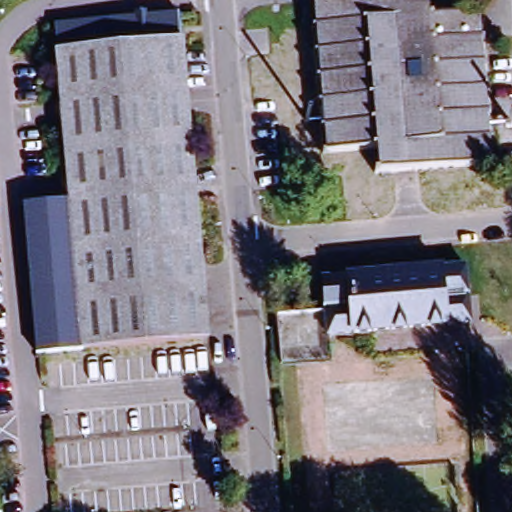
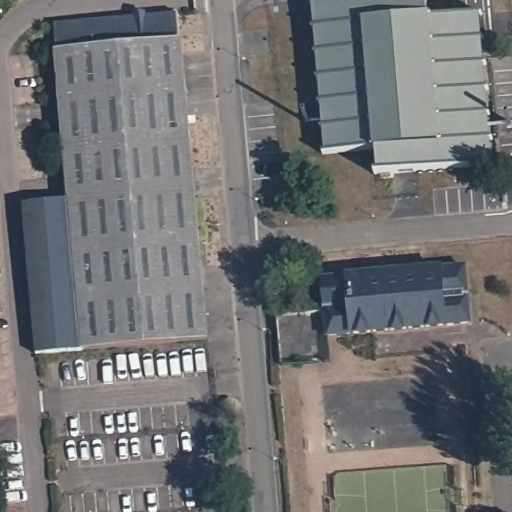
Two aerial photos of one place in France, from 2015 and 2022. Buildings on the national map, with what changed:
unchanged [(373,174),(373,172),(377,172),(375,149),(319,154),(319,152),(323,152),(321,129),(317,129),(317,127),(321,128),(319,104),(315,105),(315,103),(319,102),(317,79),(313,79),(312,77),(316,77),(315,53),(310,54),(310,52),(315,51),(312,29),(308,29),(308,28),(312,27),(310,4),(306,4),(306,2),(335,0),(426,0),(427,17),(481,13),(481,15),(477,15),(479,38),(483,37),(483,39),(479,40),(481,63),(485,63),(485,65),(481,65),(483,88),(487,88),(487,90),(483,90),(485,113),(490,113),(490,115),(485,115),(487,138),(491,137),(491,139),(487,140),(490,163),(493,163),(493,165),(373,174)]
unchanged [(205,340),(80,350),(67,199),(52,24),(177,13),(205,340)]
unchanged [(80,350),(34,353),(21,203),(67,199),(80,350)]
unchanged [(464,266),(469,324),(326,336),(320,278),(464,266)]

